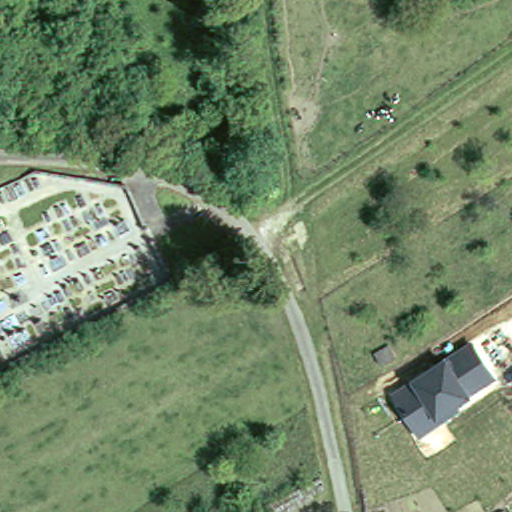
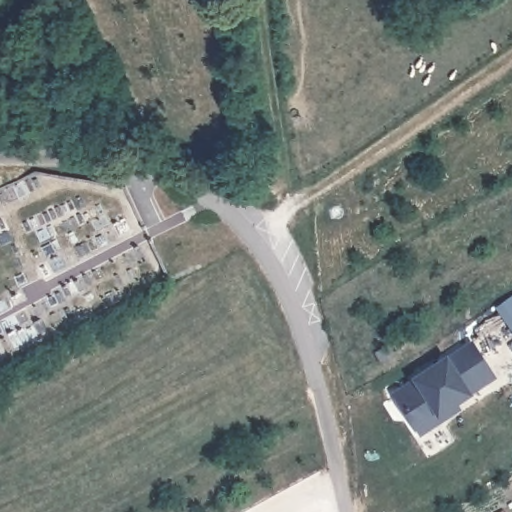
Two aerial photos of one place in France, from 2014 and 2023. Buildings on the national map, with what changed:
unchanged [(72,35),(55,39),(53,29),(70,25),(72,35)]
new [(512,296),(512,329),(496,306),(512,296)]
unchanged [(471,392),(475,397),(439,420),(424,432),(393,392),(413,380),(448,356),(474,340),(497,378),(471,392)]

